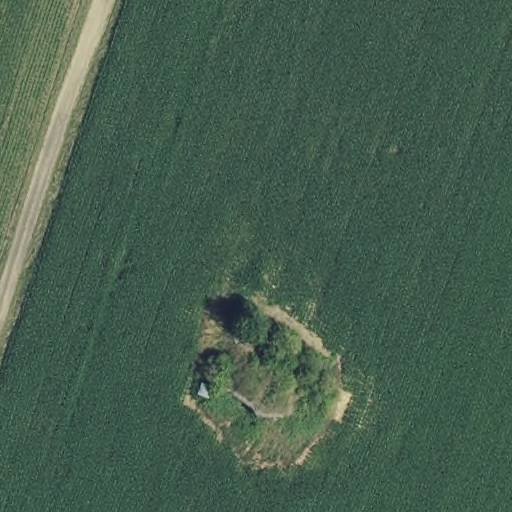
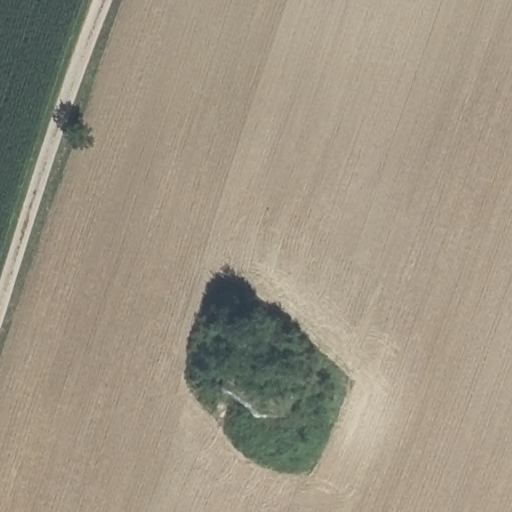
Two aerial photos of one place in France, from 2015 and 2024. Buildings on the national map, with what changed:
unchanged [(316,377),(288,419),(243,417),(200,378),(246,307),(316,377)]

